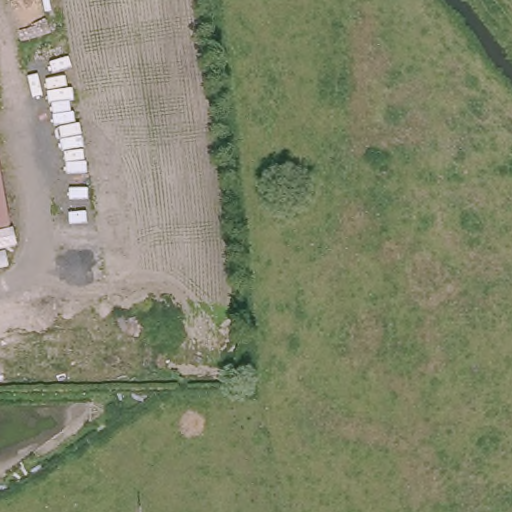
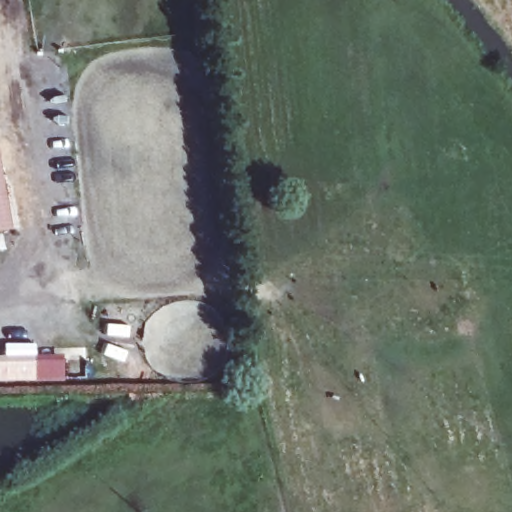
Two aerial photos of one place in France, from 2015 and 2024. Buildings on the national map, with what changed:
unchanged [(7,221),(0,223),(0,182),(7,220),(7,221)]
new [(32,383),(32,378),(0,379),(0,356),(63,354),(65,382),(32,383)]

